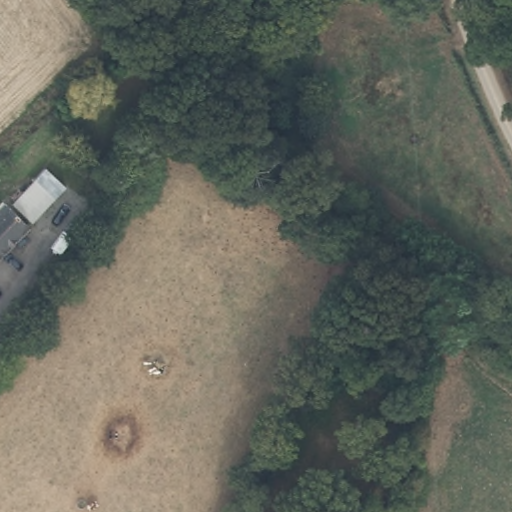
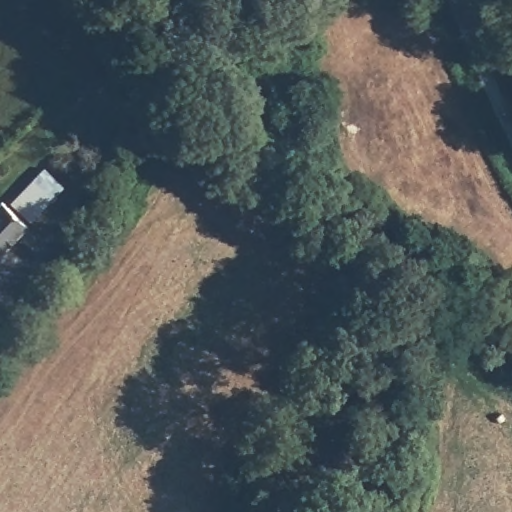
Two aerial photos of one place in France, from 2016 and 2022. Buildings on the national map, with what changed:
unchanged [(28,181),(49,196),(29,220),(10,204),(28,181)]
unchanged [(0,204),(6,207),(27,229),(0,260),(0,204)]

